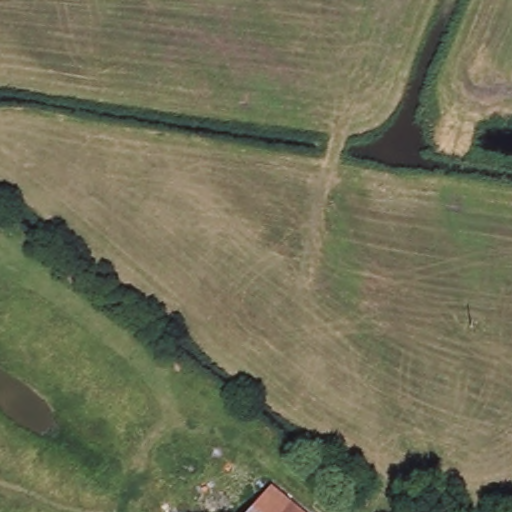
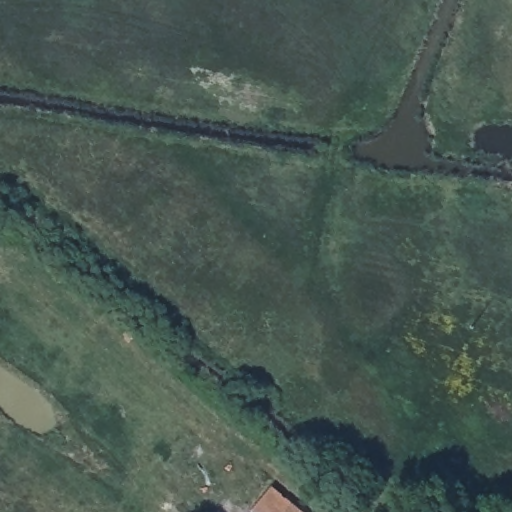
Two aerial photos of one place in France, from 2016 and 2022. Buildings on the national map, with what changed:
unchanged [(255,512),(273,490),(299,512),(255,512)]

